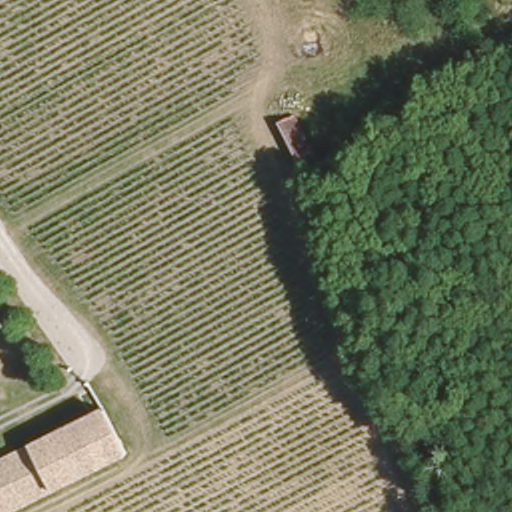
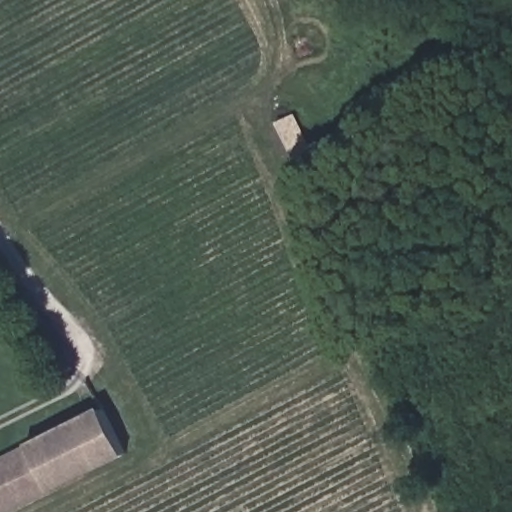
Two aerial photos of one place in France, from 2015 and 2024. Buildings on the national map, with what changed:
unchanged [(304,137),(289,146),(268,106),(285,96),(304,137)]
unchanged [(100,405),(127,450),(2,512),(0,512),(0,455),(100,405)]

